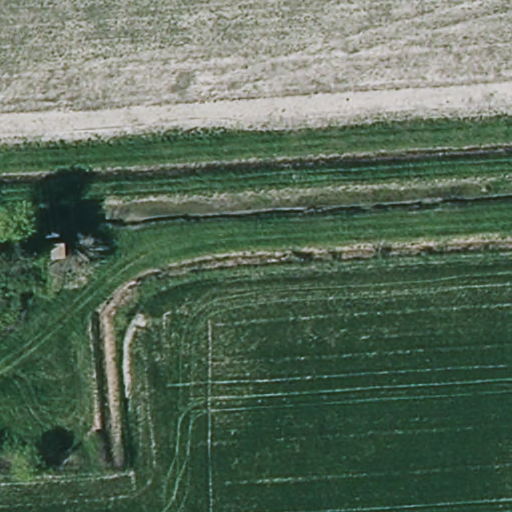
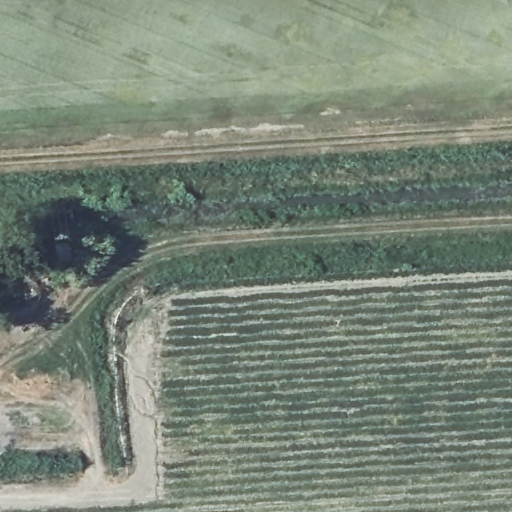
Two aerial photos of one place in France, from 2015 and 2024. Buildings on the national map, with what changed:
unchanged [(3,237),(4,268),(0,268),(0,237),(3,237)]

